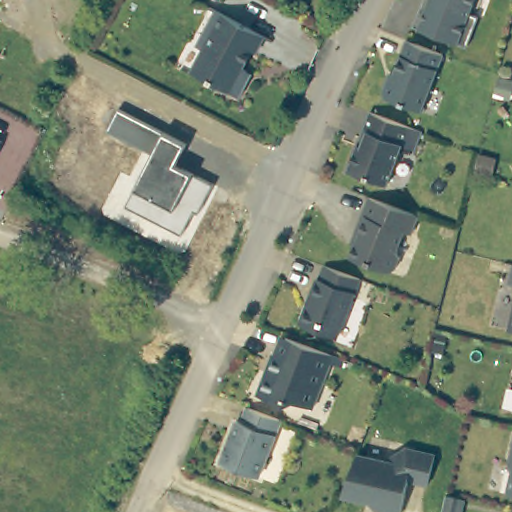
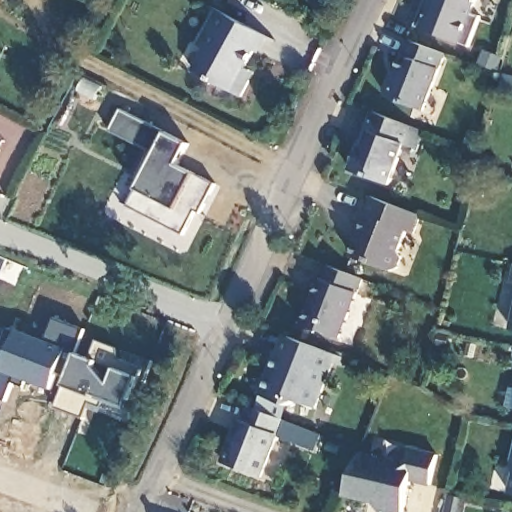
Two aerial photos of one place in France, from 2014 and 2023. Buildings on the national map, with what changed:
unchanged [(479,14),(467,44),(413,23),(422,0),(473,0),(470,10),(479,14)]
unchanged [(197,45),(216,10),(261,35),(244,70),(248,71),(244,80),(248,82),(239,97),(192,71),(204,48),(197,45)]
unchanged [(407,36),(444,51),(438,66),(421,109),(385,94),(384,92),(383,87),(383,82),(385,78),(392,76),(402,48),(407,36)]
unchanged [(121,111),(190,146),(180,167),(218,186),(202,216),(198,214),(186,238),(129,210),(156,157),(110,133),(121,111)]
unchanged [(415,152),(402,147),(385,185),(347,170),(357,145),(361,146),(367,132),(363,131),(370,112),(422,134),(415,152)]
unchanged [(0,141),(3,142),(0,148),(0,141)]
unchanged [(410,233),(403,230),(395,249),(397,256),(394,267),(386,269),(348,255),(357,233),(353,231),(367,195),(417,214),(410,233)]
unchanged [(332,340),(300,327),(317,282),(315,281),(321,266),(356,280),(332,340)]
unchanged [(510,285),(512,272),(512,285),(510,285)]
new [(41,342),(51,318),(83,330),(75,354),(66,376),(56,373),(50,390),(26,380),(23,388),(11,383),(4,401),(0,400),(0,339),(4,328),(41,342)]
unchanged [(510,330),(512,321),(512,331),(510,330)]
unchanged [(295,399),(286,403),(257,391),(261,380),(267,378),(270,370),(266,369),(273,350),(279,352),(287,335),(335,354),(344,357),(341,365),(332,361),(314,406),(295,399)]
new [(56,407),(65,385),(75,354),(90,358),(96,342),(116,349),(119,360),(148,371),(131,418),(89,403),(83,418),(56,407)]
unchanged [(258,478),(221,462),(238,420),(243,422),(248,408),(282,421),(258,478)]
unchanged [(384,463),(404,451),(432,458),(425,487),(406,482),(398,512),(375,512),(372,511),(368,503),(343,493),(359,452),(384,463)]
unchanged [(511,493),(512,488),(512,493),(511,493)]
unchanged [(455,512),(440,512),(444,496),(458,500),(455,512)]

